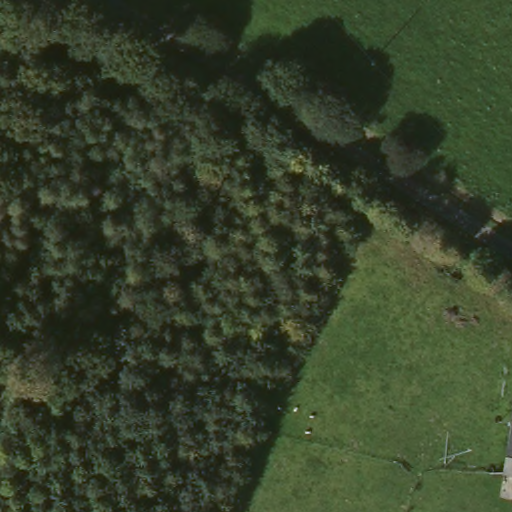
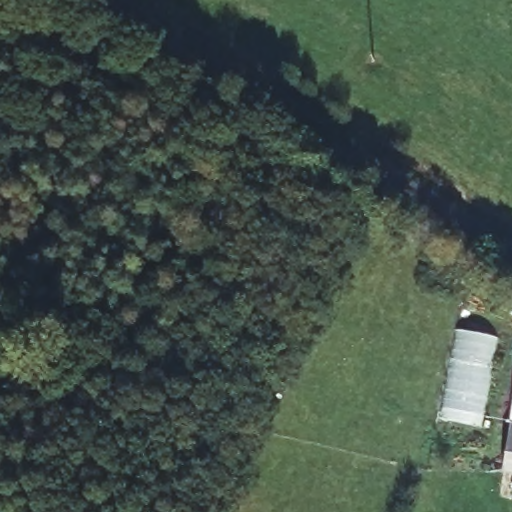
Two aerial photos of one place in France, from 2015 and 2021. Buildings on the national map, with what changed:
new [(459,331),(495,340),(479,427),(442,420),(459,331)]
new [(512,429),(508,428),(512,404),(512,429)]
unchanged [(508,428),(512,429),(512,477),(499,475),(508,428)]

